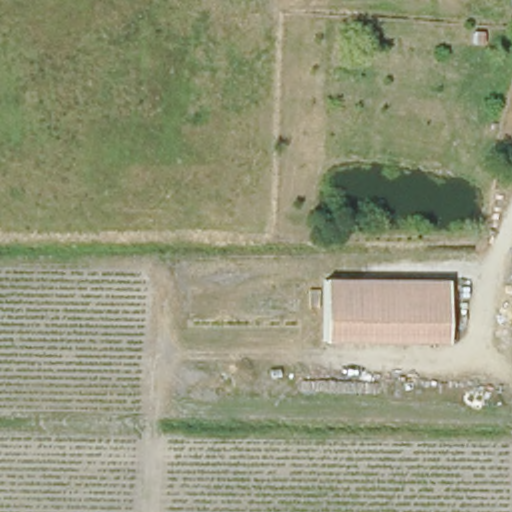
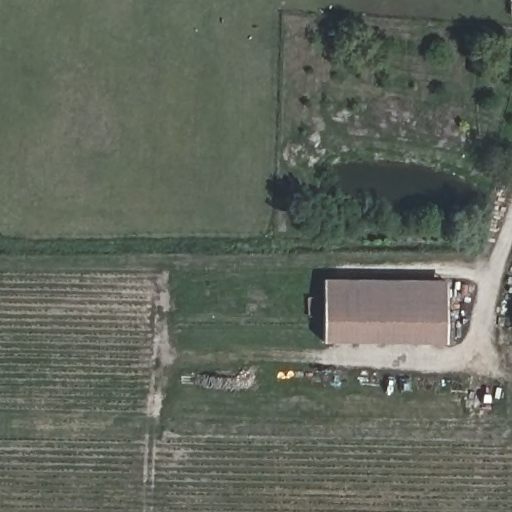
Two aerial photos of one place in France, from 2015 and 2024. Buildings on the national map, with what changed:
unchanged [(450,284),(450,345),(327,343),(327,282),(450,284)]

